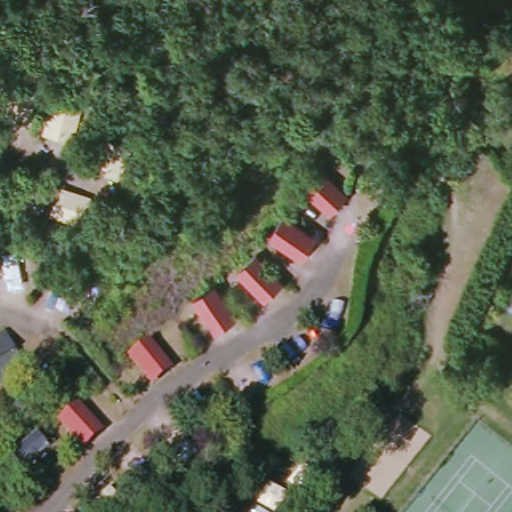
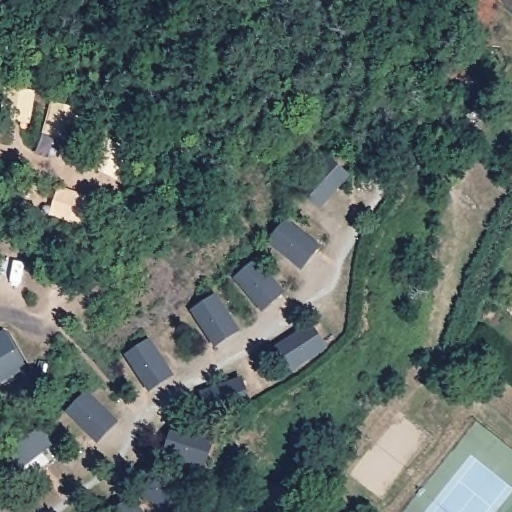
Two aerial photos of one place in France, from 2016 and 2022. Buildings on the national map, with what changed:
unchanged [(298,186),(317,166),(337,184),(345,191),(327,212),(318,205),(298,186)]
unchanged [(301,261),(294,256),(270,239),(285,218),(310,235),(316,239),(301,261)]
unchanged [(262,300),(255,292),(237,271),(256,254),(274,274),(282,282),(262,300)]
unchanged [(211,330),(205,321),(191,298),(213,284),(227,307),(233,316),(211,330)]
unchanged [(497,299),(505,289),(512,294),(512,311),(497,299)]
unchanged [(150,382),(144,373),(129,350),(152,335),(167,358),(173,366),(150,382)]
unchanged [(0,371),(0,360),(5,368),(0,371)]
unchanged [(78,441),(72,433),(55,411),(77,395),(93,416),(100,425),(78,441)]

